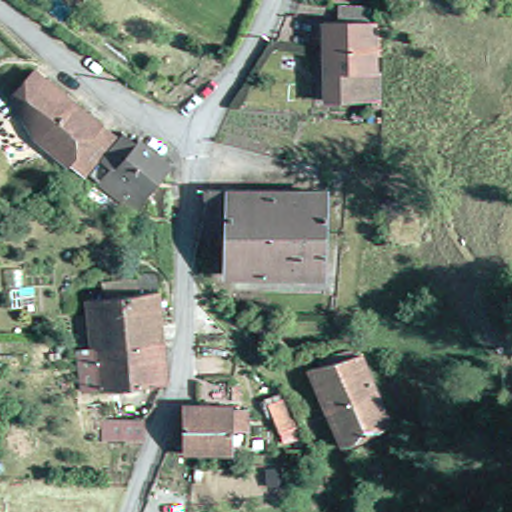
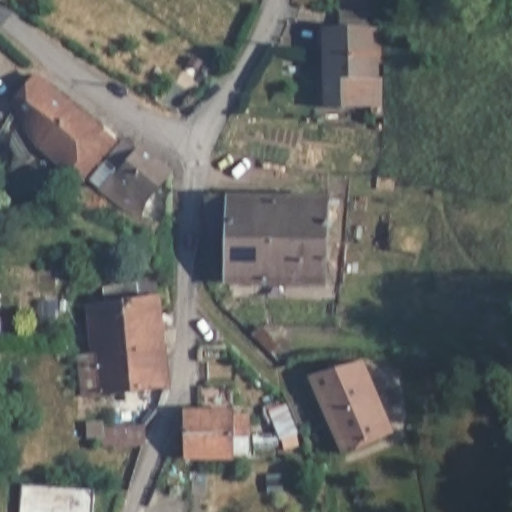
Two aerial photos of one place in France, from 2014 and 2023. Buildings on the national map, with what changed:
unchanged [(373,84),(378,84),(380,112),(327,110),(326,25),(342,25),(342,7),(370,8),(370,24),(376,24),(373,84)]
unchanged [(32,145),(10,107),(16,100),(33,80),(45,89),(115,147),(78,189),(62,174),(32,145)]
unchanged [(84,187),(117,149),(122,145),(133,155),(140,148),(170,175),(146,202),(140,219),(124,217),(114,214),(84,187)]
unchanged [(330,201),(326,292),(321,291),(229,286),(229,271),(225,264),(225,240),(222,240),(207,237),(210,195),(330,201)]
unchanged [(100,355),(100,350),(82,350),(80,310),(98,310),(98,305),(163,298),(165,351),(100,355)]
unchanged [(167,396),(162,396),(95,400),(92,356),(100,355),(165,351),(167,396)]
unchanged [(340,455),(303,378),(337,363),(334,356),(342,352),(345,356),(351,353),(353,356),(389,434),(340,455)]
unchanged [(180,458),(182,411),(207,412),(230,413),(230,418),(245,418),(245,450),(232,450),(232,460),(180,458)]
unchanged [(134,423),(135,444),(91,445),(91,425),(134,423)]
new [(94,512),(20,512),(22,485),(38,486),(96,491),(94,512)]

